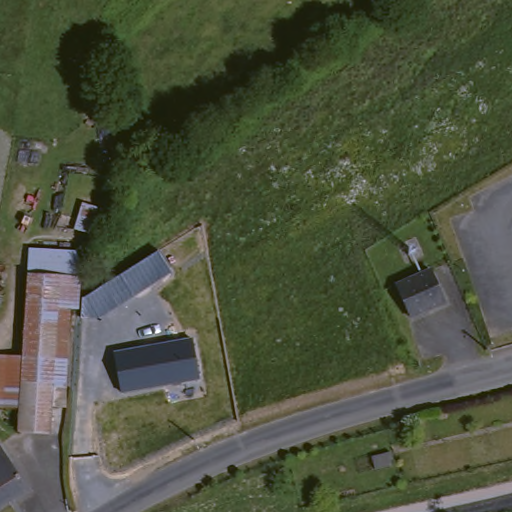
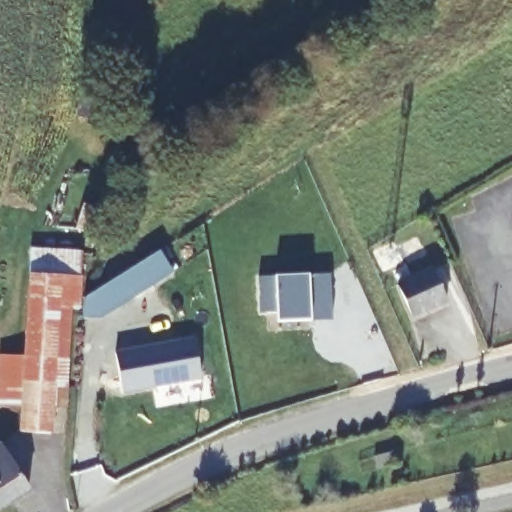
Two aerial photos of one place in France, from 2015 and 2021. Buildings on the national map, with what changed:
unchanged [(30,247),(75,250),(73,298),(73,309),(72,313),(72,319),(65,369),(71,370),(71,373),(71,378),(71,379),(66,402),(66,403),(59,403),(55,403),(46,402),(44,430),(19,429),(30,247)]
unchanged [(82,277),(82,297),(158,250),(172,272),(98,318),(82,318),(81,309),(73,309),(73,298),(74,284),(74,277),(82,277)]
unchanged [(447,307),(413,318),(401,284),(435,272),(447,307)]
new [(331,322),(310,322),(276,324),(276,309),(259,313),(258,279),(274,278),(308,277),(330,274),(331,322)]
unchanged [(193,337),(201,379),(120,392),(113,351),(193,337)]
unchanged [(26,486),(0,505),(0,445),(1,444),(26,486)]

